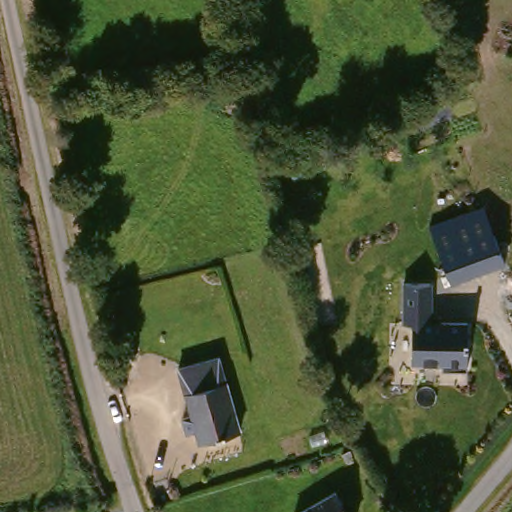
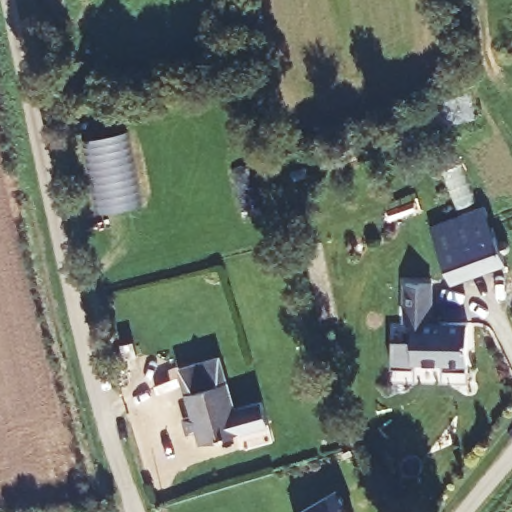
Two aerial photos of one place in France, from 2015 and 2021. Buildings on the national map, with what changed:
new [(102,210),(87,140),(124,132),(139,204),(102,210)]
unchanged [(507,264),(451,285),(428,226),(484,203),(507,264)]
unchanged [(436,282),(436,312),(443,312),(443,319),(469,321),(468,370),(442,368),(441,363),(412,363),(412,321),(404,321),(404,281),(436,282)]
unchanged [(214,355),(231,403),(264,397),(273,426),(199,444),(174,369),(214,355)]
unchanged [(299,512),(328,495),(338,512),(299,512)]

